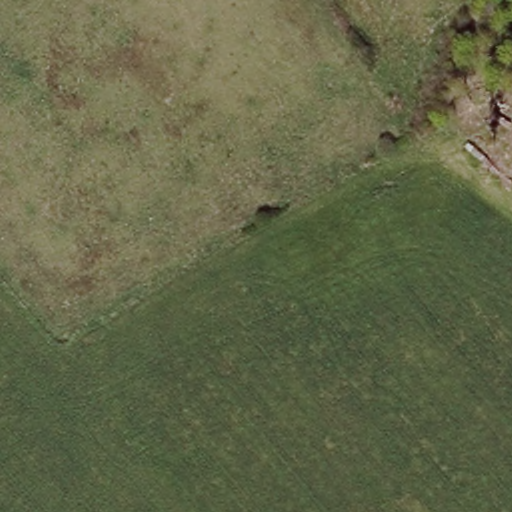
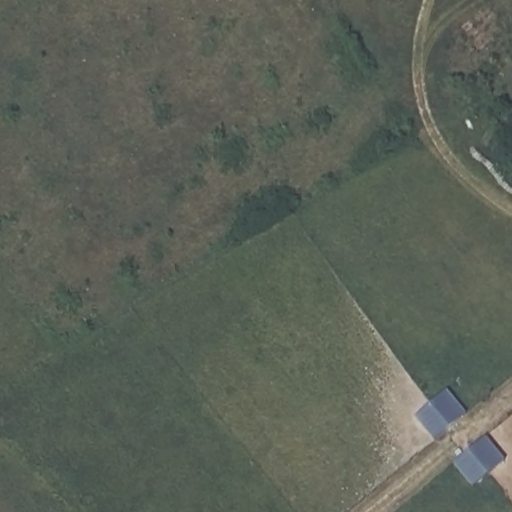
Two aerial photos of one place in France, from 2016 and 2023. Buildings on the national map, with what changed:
new [(449,392),(470,417),(439,443),(418,418),(449,392)]
new [(487,438),(507,461),(476,487),(457,464),(487,438)]

